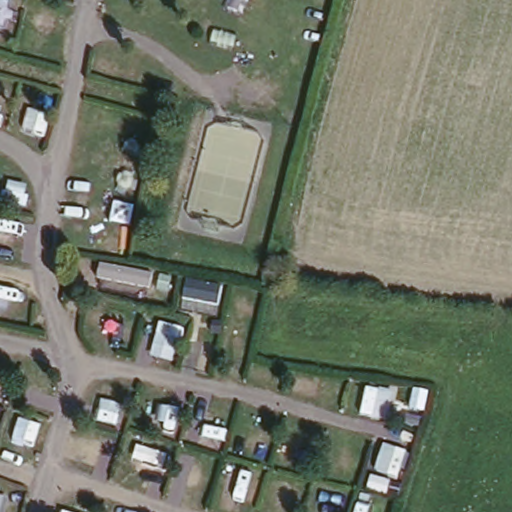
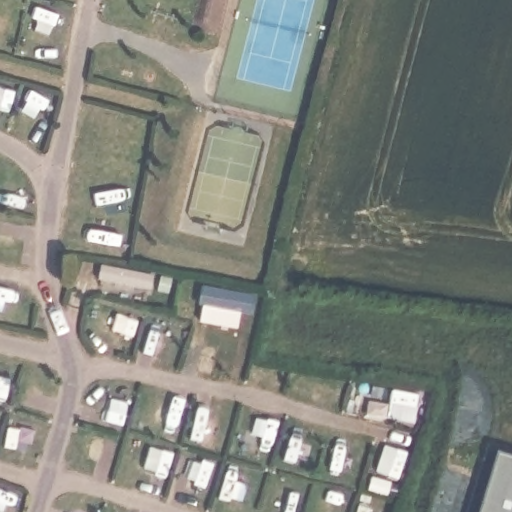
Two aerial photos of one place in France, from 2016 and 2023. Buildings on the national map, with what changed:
new [(512,446),(512,512),(473,512),(495,441),(512,446)]

